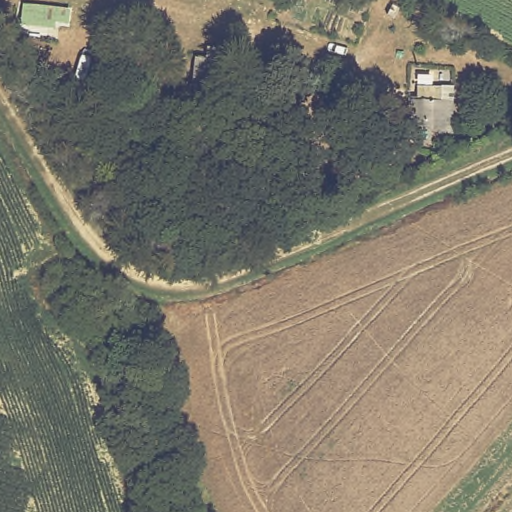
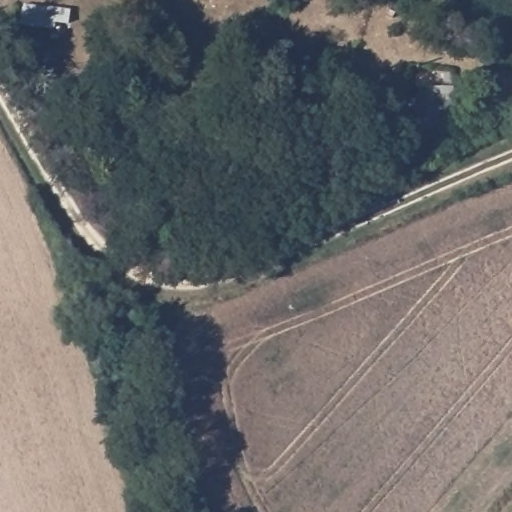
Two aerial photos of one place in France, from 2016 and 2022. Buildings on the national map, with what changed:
unchanged [(71,8),(69,35),(19,31),(23,3),(71,8)]

